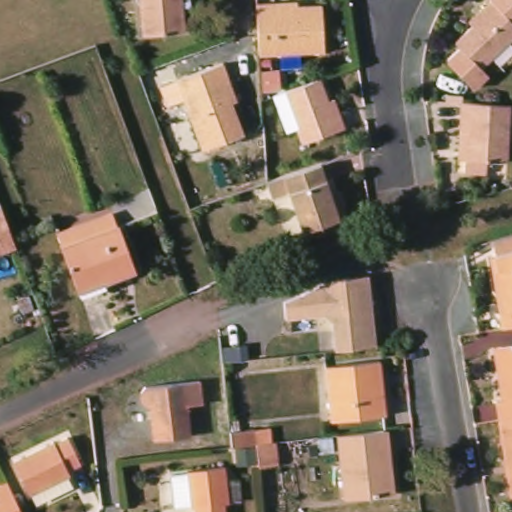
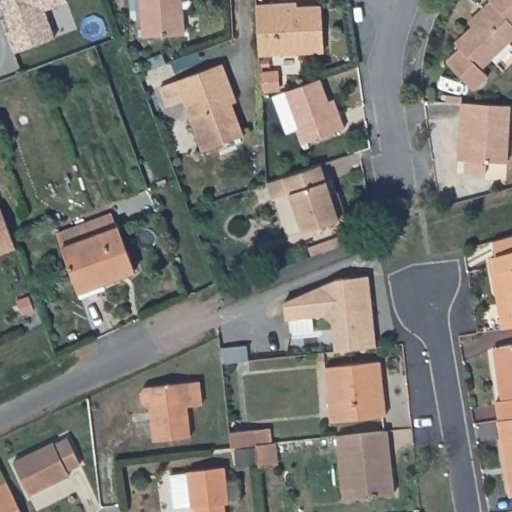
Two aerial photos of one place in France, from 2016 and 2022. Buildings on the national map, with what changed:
new [(44,8),(54,35),(13,51),(6,30),(10,29),(5,15),(0,16),(0,0),(65,0),(44,8)]
unchanged [(190,32),(148,35),(145,0),(187,0),(190,32)]
unchanged [(485,69),(492,76),(479,89),(476,88),(453,64),(453,59),(465,47),(460,42),(478,25),(475,21),(485,11),(496,0),(512,17),(512,43),(485,69)]
unchanged [(496,0),(512,0),(512,17),(496,0)]
unchanged [(297,2),(297,6),(322,5),(324,51),(259,55),(256,4),(273,3),(297,2)]
unchanged [(227,63),(242,100),(237,102),(249,135),(208,150),(182,80),(227,63)]
unchanged [(340,100),(344,113),(350,128),(307,144),(302,129),(291,132),(285,115),(278,96),(325,79),(333,102),(340,100)]
unchanged [(467,119),(466,119),(467,102),(512,105),(512,162),(492,161),(491,174),(469,172),(470,160),(463,160),(467,119)]
unchanged [(326,165),(336,194),(342,191),(346,202),(351,217),(307,232),(295,194),(278,200),(272,182),(326,165)]
unchanged [(0,254),(0,207),(14,249),(0,254)]
unchanged [(140,270),(84,291),(67,247),(62,234),(116,214),(121,227),(124,226),(140,270)]
unchanged [(322,242),(336,236),(340,245),(326,251),(322,242)]
unchanged [(505,312),(510,311),(501,257),(500,255),(501,255),(498,240),(512,237),(512,328),(507,328),(505,312)]
unchanged [(332,322),(325,315),(287,318),(284,299),(323,285),(322,282),(369,275),(376,347),(335,350),(332,322)]
unchanged [(502,400),(494,347),(500,346),(512,345),(512,418),(499,420),(496,401),(502,400)]
unchanged [(385,361),(391,415),(336,421),(331,367),(385,361)]
unchanged [(205,381),(207,404),(192,406),(196,436),(159,440),(155,405),(152,405),(147,401),(146,392),(151,387),(205,381)]
unchanged [(512,418),(512,496),(499,420),(512,418)]
unchanged [(255,430),(257,445),(232,447),(230,431),(255,430)]
unchanged [(395,448),(397,470),(400,493),(349,499),(342,436),(392,430),(395,448)]
unchanged [(59,442),(60,443),(72,437),(85,464),(72,470),(75,475),(35,495),(19,461),(59,442)]
unchanged [(276,465),(258,466),(257,445),(273,442),(276,465)]
unchanged [(238,503),(234,503),(235,512),(206,512),(205,507),(202,507),(201,505),(185,507),(180,475),(197,473),(197,471),(234,466),(238,503)]
unchanged [(0,494),(0,488),(12,482),(26,512),(0,512),(0,503),(4,501),(0,494)]

